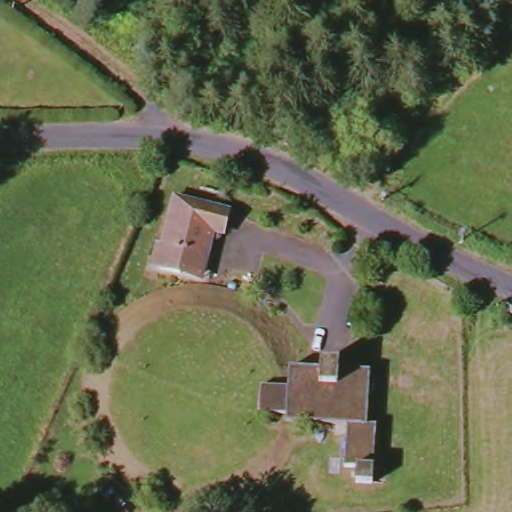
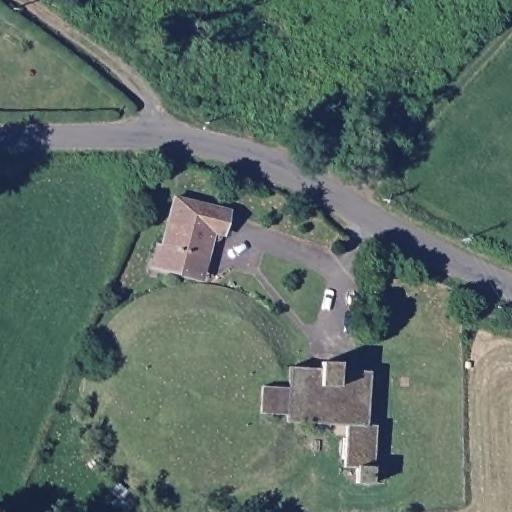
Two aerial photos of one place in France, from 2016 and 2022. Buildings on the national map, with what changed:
unchanged [(230,209),(222,242),(214,241),(204,283),(152,271),(172,195),(230,209)]

